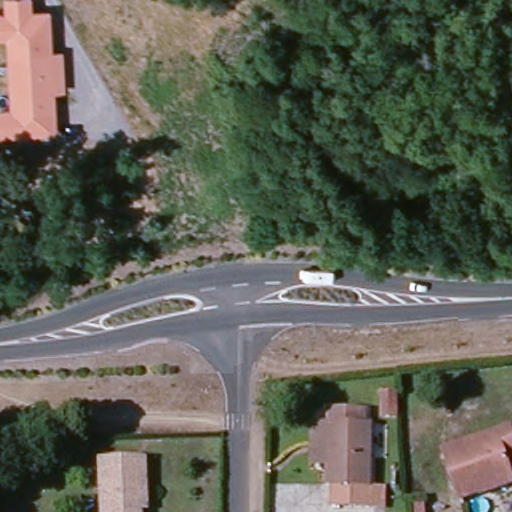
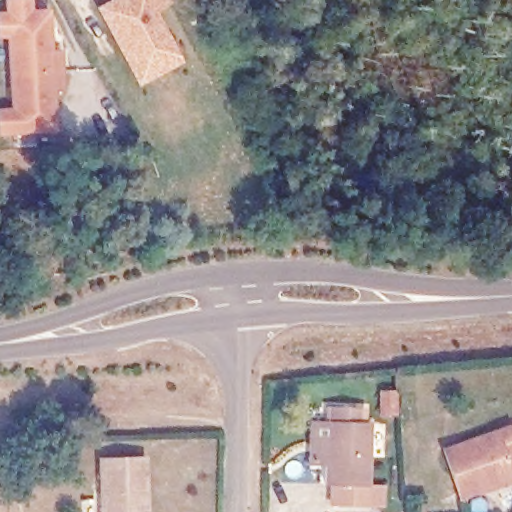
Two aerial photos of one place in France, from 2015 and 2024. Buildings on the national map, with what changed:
unchanged [(66,93),(56,92),(58,134),(0,136),(0,108),(7,107),(5,39),(0,39),(0,12),(7,12),(7,0),(32,0),(33,10),(50,8),(52,50),(65,48),(66,93)]
new [(171,4),(156,10),(184,62),(138,87),(96,7),(110,0),(170,0),(171,4)]
unchanged [(402,384),(405,403),(388,405),(387,386),(402,384)]
unchanged [(377,411),(377,421),(380,421),(374,507),(338,506),(340,483),(334,482),(335,468),(322,468),(324,419),(337,420),(338,408),(377,411)]
unchanged [(476,497),(456,503),(440,453),(505,433),(512,431),(512,463),(502,466),(506,476),(508,487),(476,497)]
unchanged [(142,508),(136,508),(136,512),(99,512),(96,462),(139,460),(141,496),(142,508)]

